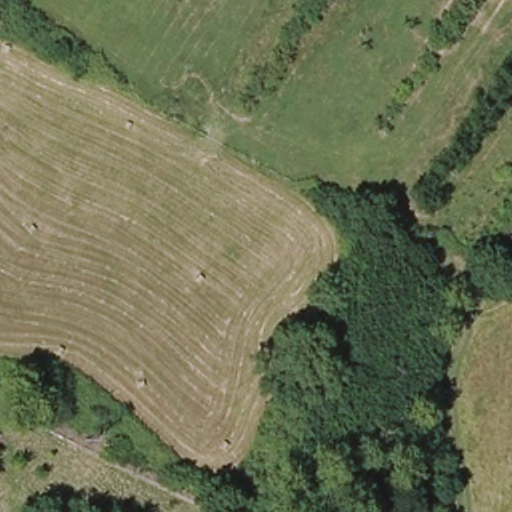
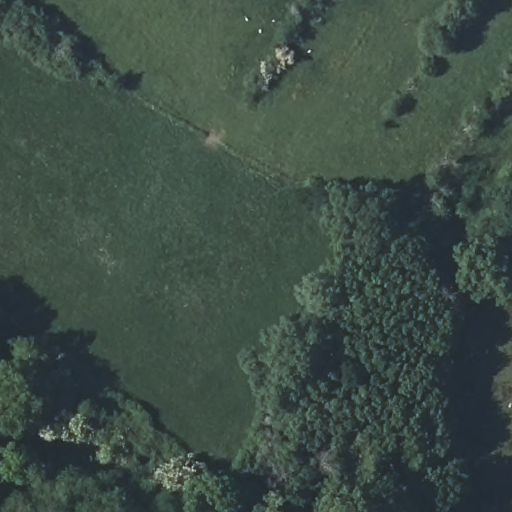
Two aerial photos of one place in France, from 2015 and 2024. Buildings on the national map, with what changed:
[]

